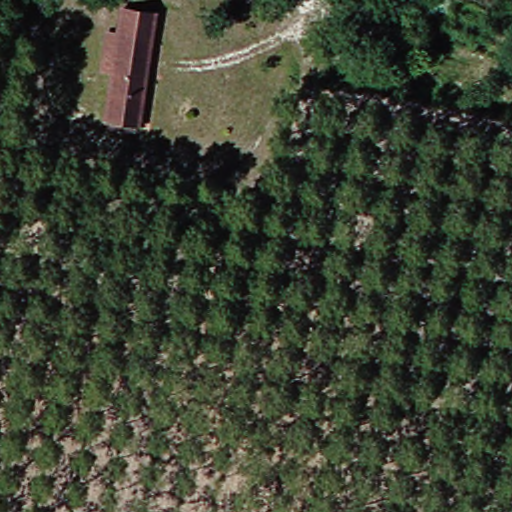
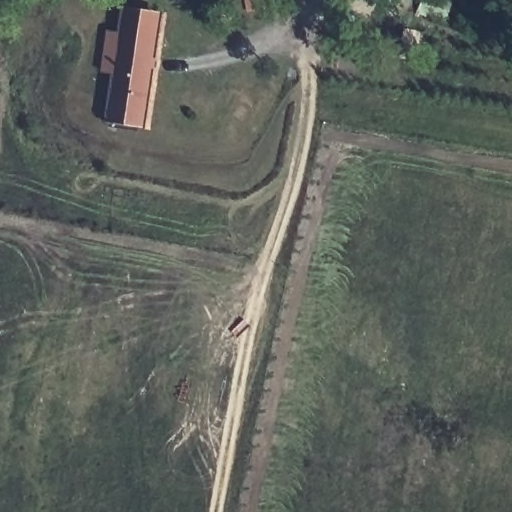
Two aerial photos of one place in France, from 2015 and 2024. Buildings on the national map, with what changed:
unchanged [(99,118),(107,72),(97,71),(104,30),(115,31),(119,9),(153,15),(150,37),(133,124),(99,118)]

